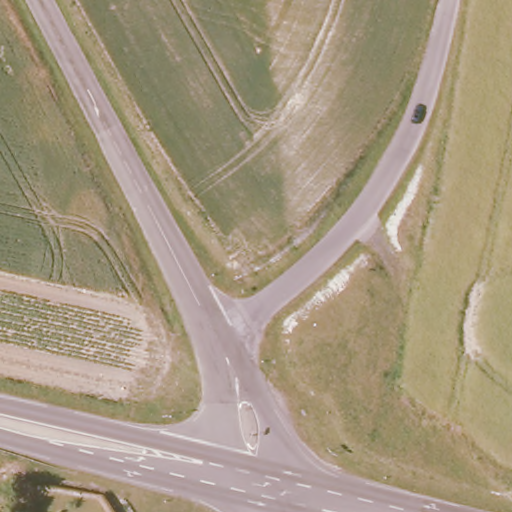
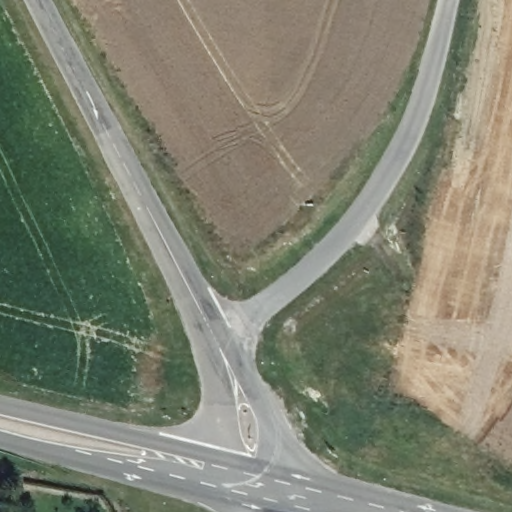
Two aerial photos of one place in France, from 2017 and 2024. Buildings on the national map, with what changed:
[]

